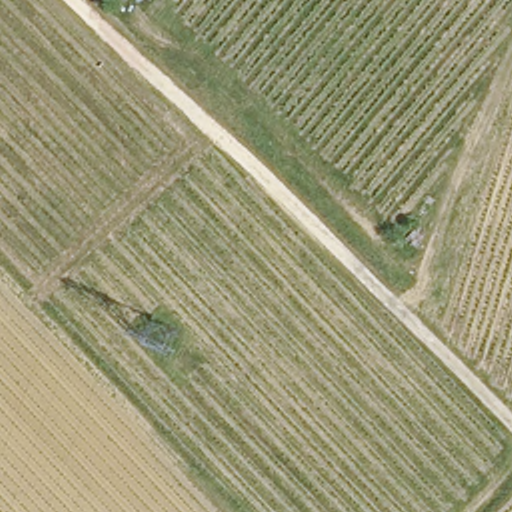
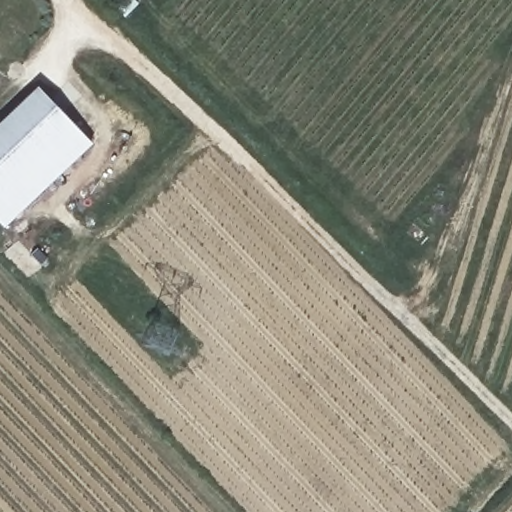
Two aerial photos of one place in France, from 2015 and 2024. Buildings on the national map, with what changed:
new [(0,218),(0,123),(39,87),(93,143),(6,224),(0,218)]

